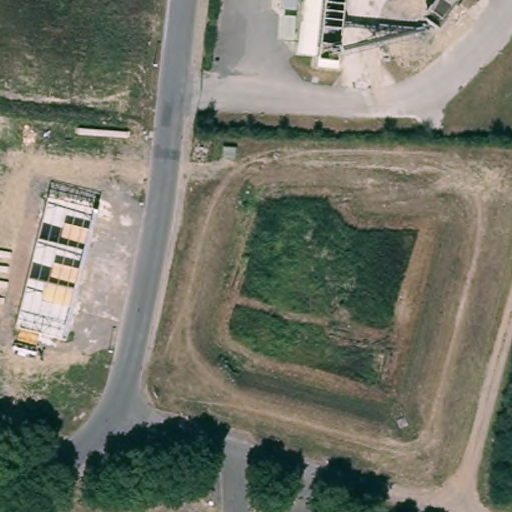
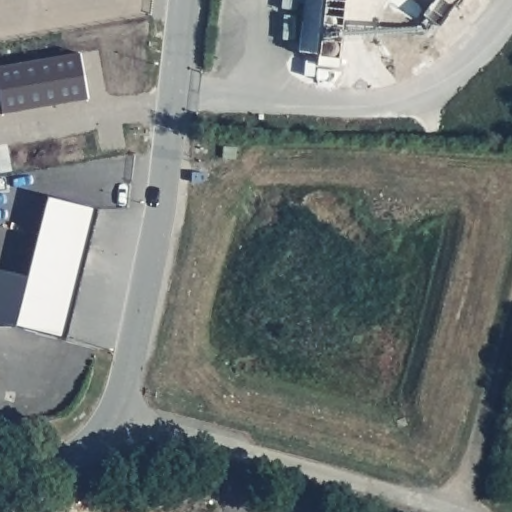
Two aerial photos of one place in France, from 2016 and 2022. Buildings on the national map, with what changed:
unchanged [(337,68),(317,65),(319,54),(298,52),(304,0),(345,0),(337,68)]
new [(79,52),(87,97),(2,113),(0,101),(0,65),(79,52)]
new [(27,276),(47,196),(98,208),(65,339),(15,326),(0,326),(0,269),(27,276)]

